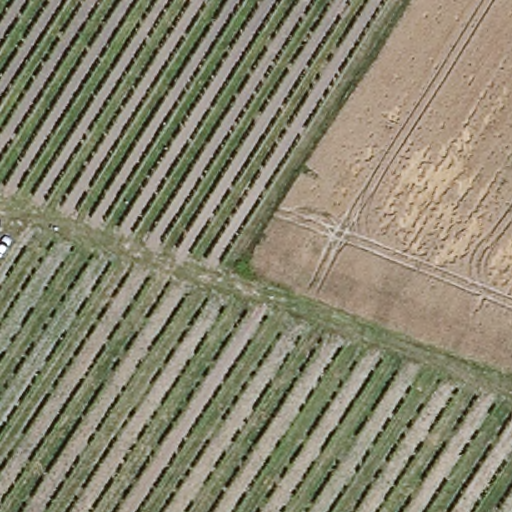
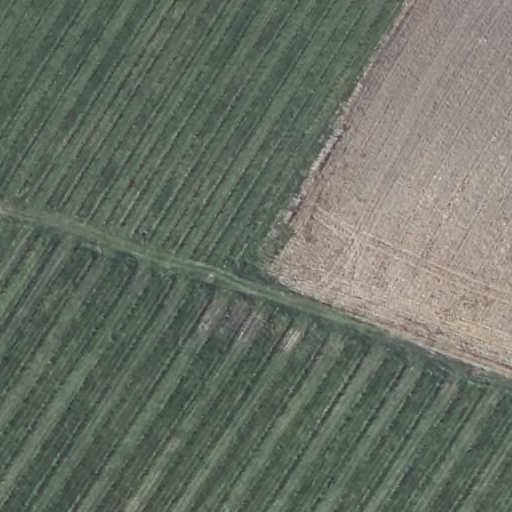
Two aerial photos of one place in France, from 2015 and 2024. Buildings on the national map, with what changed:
[]

